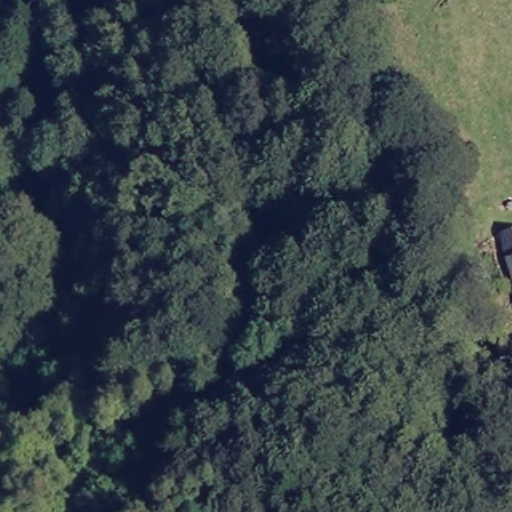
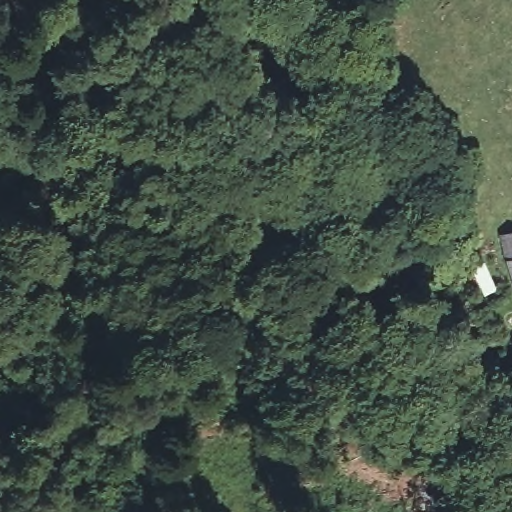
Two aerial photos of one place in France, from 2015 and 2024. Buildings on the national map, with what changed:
unchanged [(505,240),(512,239),(512,264),(505,240)]

